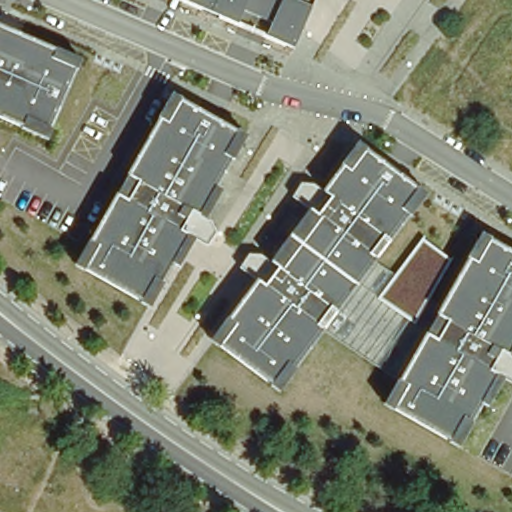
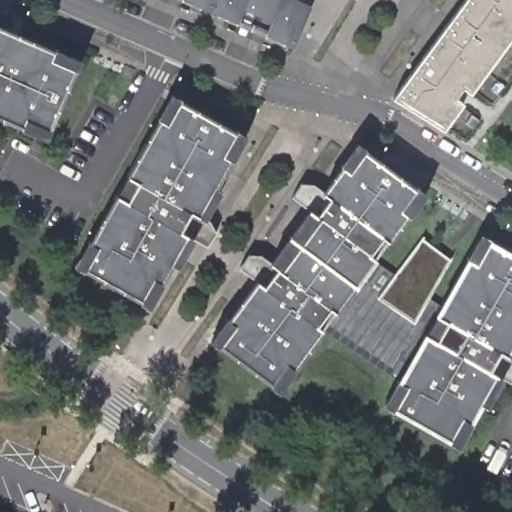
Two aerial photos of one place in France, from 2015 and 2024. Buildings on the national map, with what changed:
unchanged [(316,4),(296,49),(184,0),(307,0),(316,4)]
new [(465,86),(458,97),(466,103),(445,129),(395,97),(467,0),(512,0),(512,38),(472,92),(465,86)]
unchanged [(88,58),(52,140),(0,117),(0,21),(88,58)]
unchanged [(252,132),(153,308),(76,263),(173,91),(252,132)]
unchanged [(251,279),(243,271),(250,255),(267,255),(272,258),(306,211),(294,201),(300,183),(314,183),(322,186),(359,138),(431,193),(283,390),(210,337),(251,279)]
unchanged [(512,249),(512,359),(460,445),(385,402),(480,232),(512,249)]
unchanged [(424,236),(452,260),(415,322),(379,297),(424,236)]

